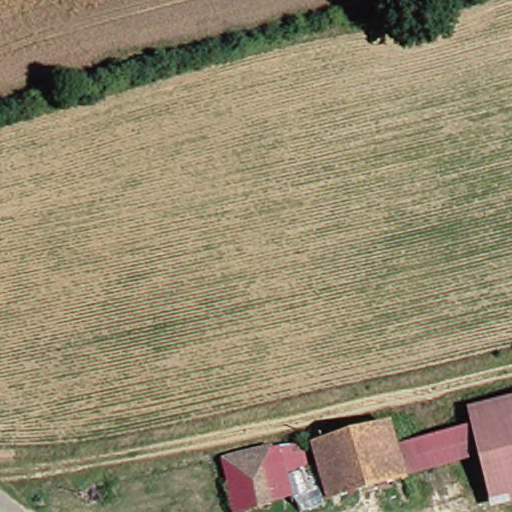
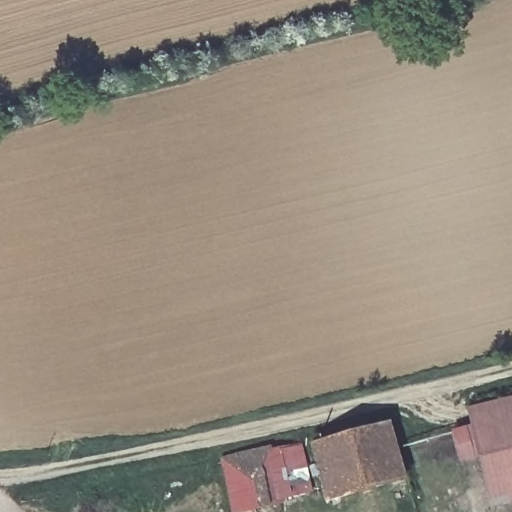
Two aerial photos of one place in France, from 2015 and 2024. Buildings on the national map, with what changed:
unchanged [(468,430),(462,411),(512,399),(512,505),(488,511),(474,460),(419,474),(411,445),(468,430)]
unchanged [(410,478),(332,498),(320,446),(397,427),(410,478)]
unchanged [(275,505),(238,511),(229,452),(266,445),(275,505)]

